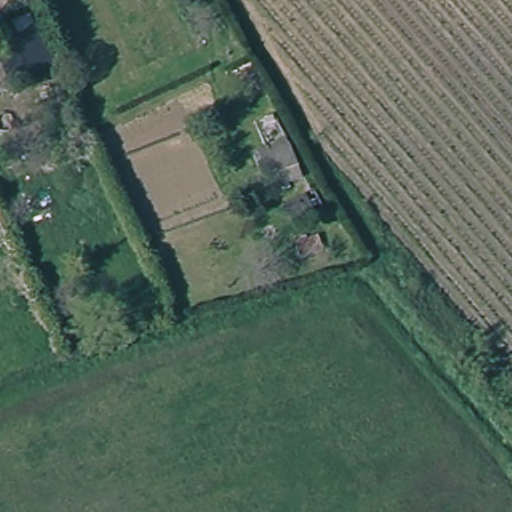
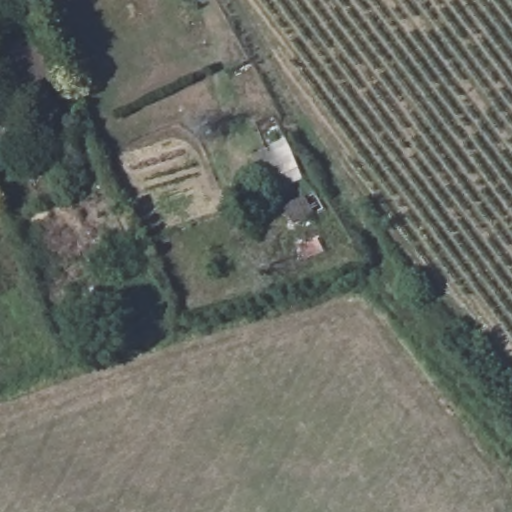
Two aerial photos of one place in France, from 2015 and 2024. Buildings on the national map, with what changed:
unchanged [(49,69),(32,76),(20,50),(37,43),(49,69)]
unchanged [(289,144),(301,180),(269,189),(253,157),(289,144)]

